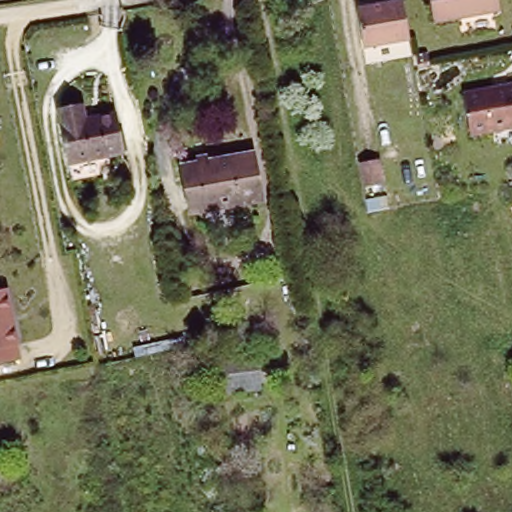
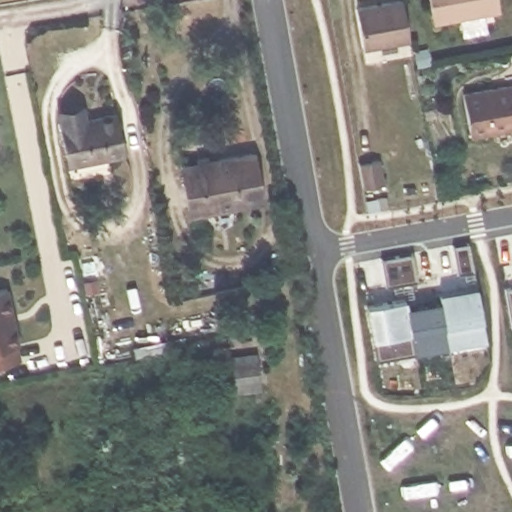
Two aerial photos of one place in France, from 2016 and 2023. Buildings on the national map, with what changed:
unchanged [(427,0),(495,0),(497,16),(431,25),(427,0)]
unchanged [(412,41),(367,50),(360,11),(406,2),(412,41)]
unchanged [(474,133),(467,91),(512,85),(512,128),(474,133)]
unchanged [(108,162),(68,170),(65,153),(56,104),(80,100),(82,110),(112,104),(119,143),(105,146),(108,162)]
unchanged [(186,161),(257,148),(266,194),(194,207),(186,161)]
unchanged [(357,159),(376,155),(381,179),(361,182),(357,159)]
new [(379,359),(379,341),(377,342),(370,305),(479,285),(487,342),(379,359)]
new [(509,288),(512,288),(512,311),(509,288)]
unchanged [(11,317),(9,317),(11,326),(13,326),(17,345),(15,346),(19,361),(0,364),(0,290),(5,289),(11,317)]
unchanged [(237,357),(267,351),(272,382),(244,388),(237,357)]

